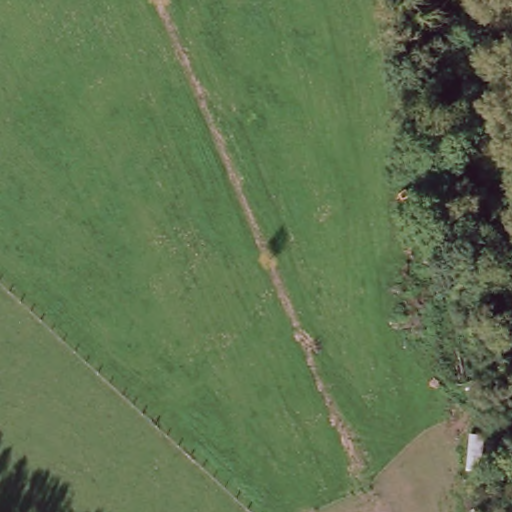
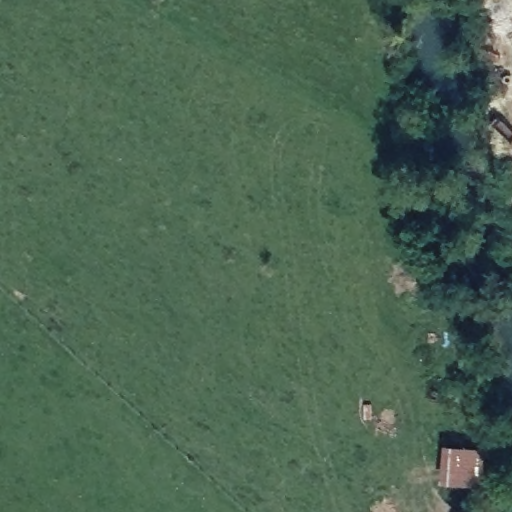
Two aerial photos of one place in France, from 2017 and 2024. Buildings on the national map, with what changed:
new [(483,473),(470,472),(469,482),(440,478),(445,440),(487,446),(483,473)]

